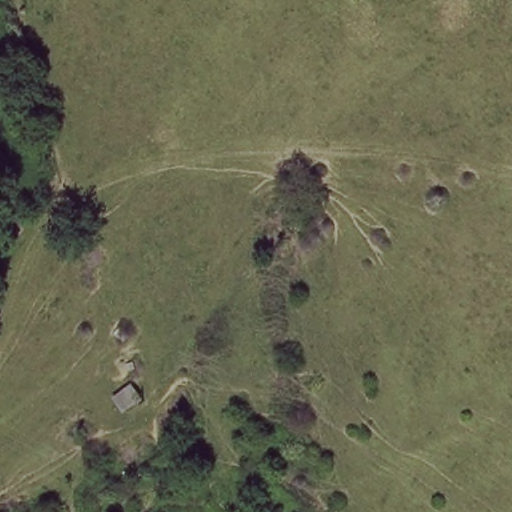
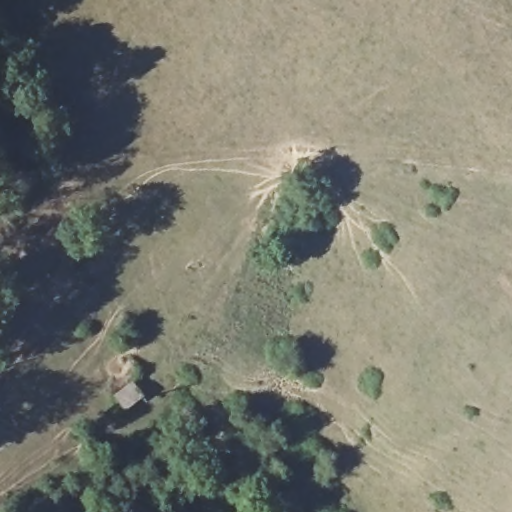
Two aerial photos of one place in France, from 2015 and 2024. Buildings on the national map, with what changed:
unchanged [(145,400),(124,415),(111,397),(132,381),(145,400)]

